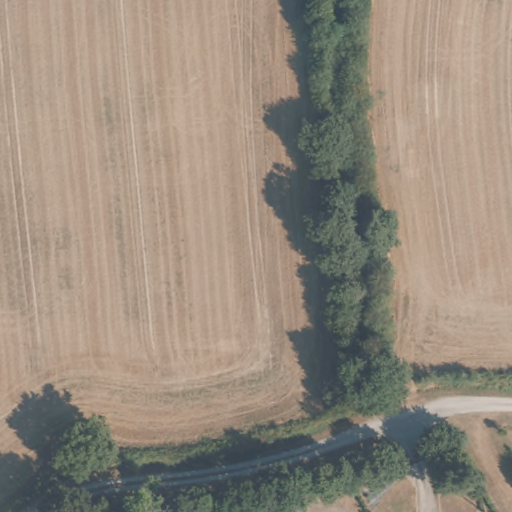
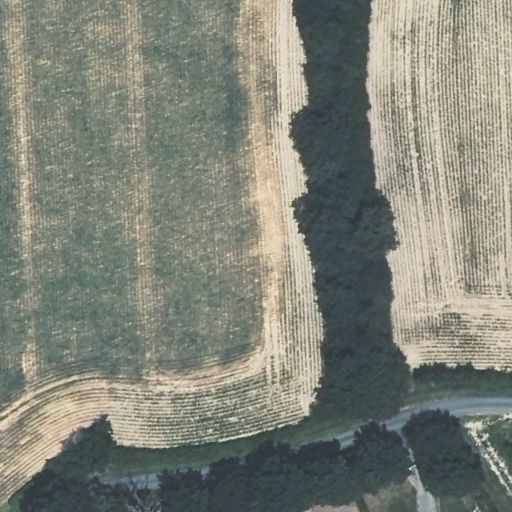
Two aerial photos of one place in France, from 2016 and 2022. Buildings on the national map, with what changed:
unchanged [(299,512),(269,512),(296,503),(299,512)]

